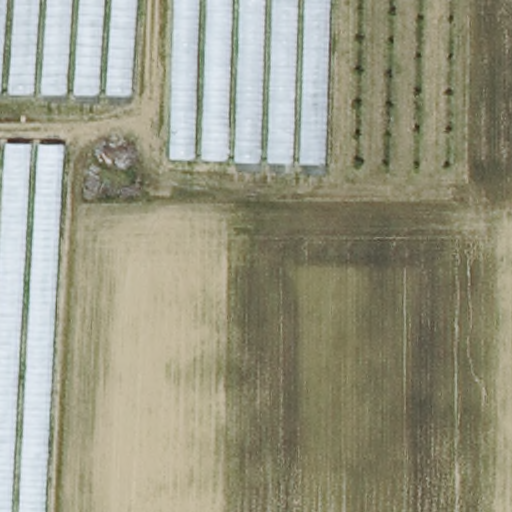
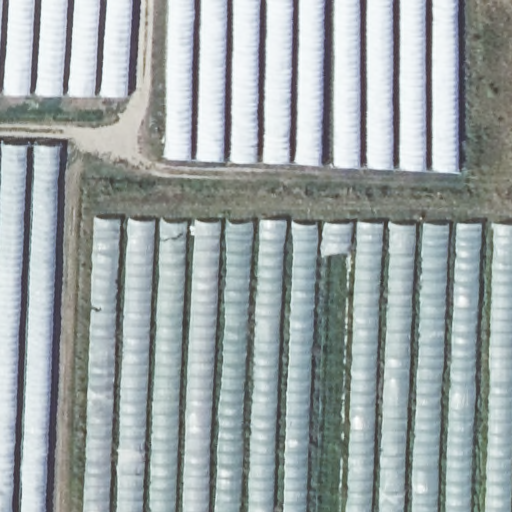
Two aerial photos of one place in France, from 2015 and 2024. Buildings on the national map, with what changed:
new [(0,94),(0,0),(131,0),(126,97),(0,94)]
new [(336,166),(164,159),(167,0),(458,0),(459,172),(336,166)]
new [(45,512),(0,512),(0,144),(58,146),(45,512)]
new [(512,224),(512,512),(86,512),(96,217),(512,224)]

